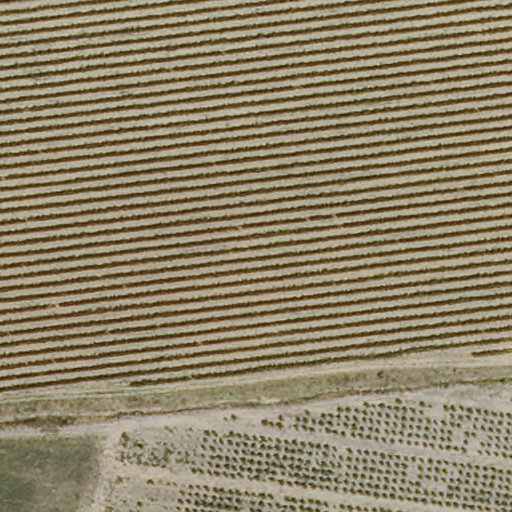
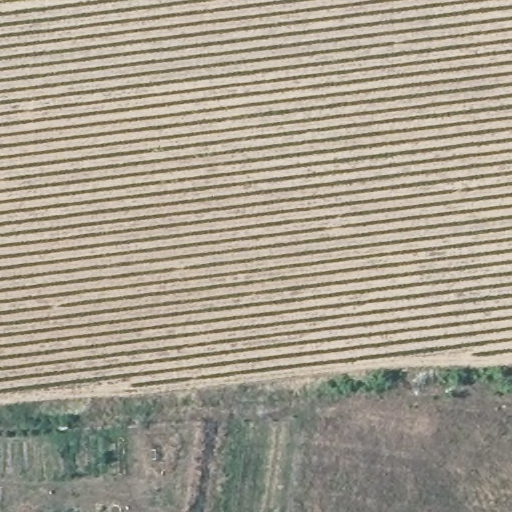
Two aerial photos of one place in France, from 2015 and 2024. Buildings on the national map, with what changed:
[]

